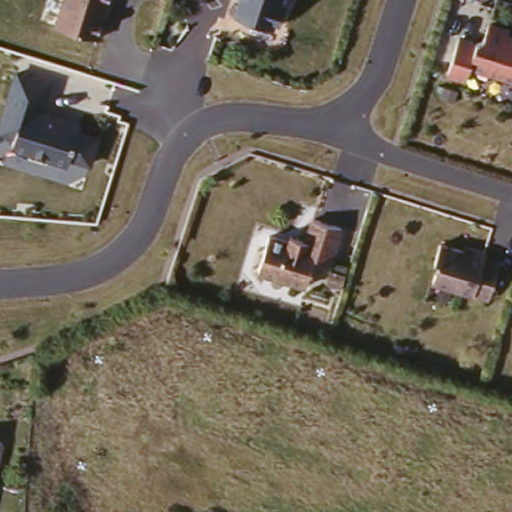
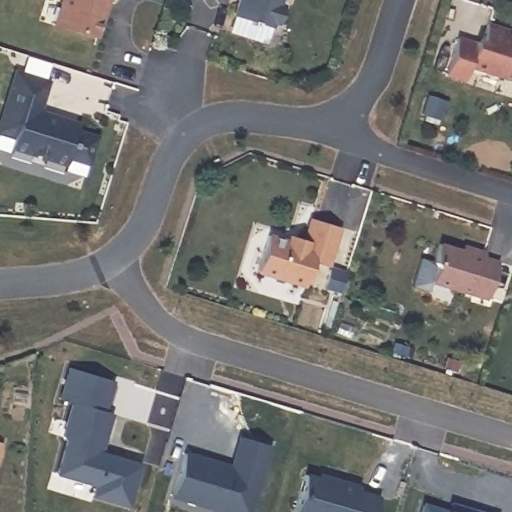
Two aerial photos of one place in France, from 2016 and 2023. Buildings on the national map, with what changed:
unchanged [(92,42),(49,31),(58,0),(107,0),(92,42)]
unchanged [(273,32),(232,19),(237,0),(283,0),(273,32)]
unchanged [(462,87),(442,82),(455,37),(477,44),(481,27),(512,35),(512,83),(471,70),(462,87)]
unchanged [(7,154),(10,138),(0,134),(0,117),(14,70),(56,84),(42,114),(102,132),(90,171),(66,164),(62,172),(7,154)]
unchanged [(267,231),(304,241),(308,222),(341,231),(332,267),(313,263),(305,292),(256,275),(267,231)]
unchanged [(441,244),(499,261),(488,300),(429,285),(441,244)]
new [(112,380),(104,407),(112,411),(105,440),(98,437),(93,453),(117,461),(118,456),(142,463),(128,507),(92,497),(96,487),(57,475),(67,443),(64,435),(74,402),(62,398),(71,368),(112,380)]
new [(233,459),(239,435),(273,445),(252,512),(223,512),(173,498),(186,448),(229,462),(233,459)]
new [(333,478),(362,487),(360,492),(380,498),(376,512),(296,512),(307,473),(332,482),(333,478)]
new [(425,512),(421,512),(422,511),(425,512)]

